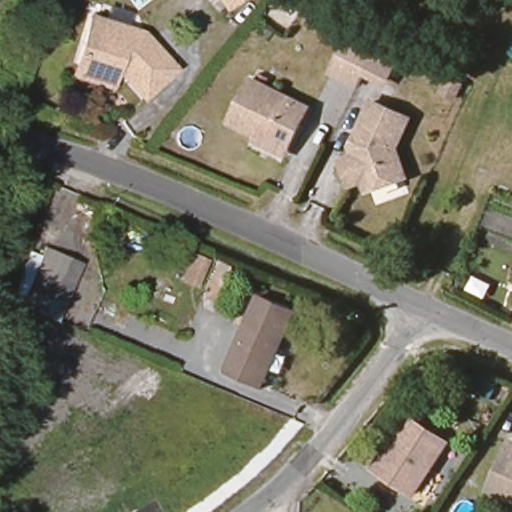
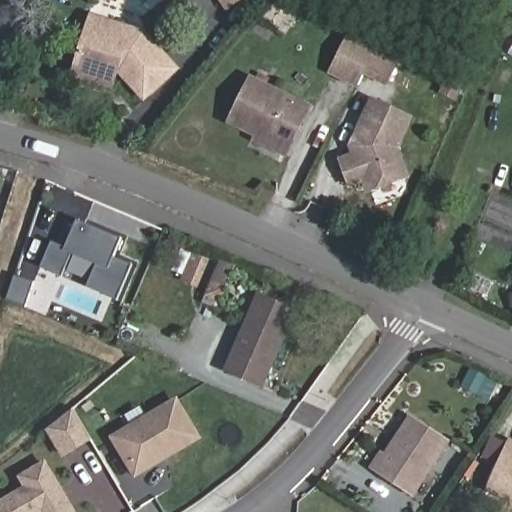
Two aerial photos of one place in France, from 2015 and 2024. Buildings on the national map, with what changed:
unchanged [(234,8),(228,0),(244,0),(234,8)]
unchanged [(76,76),(80,68),(96,22),(145,38),(179,71),(151,102),(120,73),(113,87),(76,76)]
unchanged [(342,39),(346,31),(369,43),(373,37),(374,38),(394,47),(379,79),(357,68),(348,86),(324,75),(342,39)]
unchanged [(255,143),(261,134),(235,121),(255,84),(310,113),(289,149),(285,155),(255,143)]
unchanged [(341,182),(336,169),(350,164),(375,115),(403,129),(389,159),(397,185),(360,197),(357,187),(344,192),(341,182)]
new [(40,268),(51,242),(65,247),(75,221),(121,239),(113,258),(131,266),(116,300),(85,287),(95,264),(72,255),(62,278),(40,268)]
demolished [(85,264),(63,321),(26,308),(48,247),(85,264)]
unchanged [(200,288),(184,283),(196,254),(213,261),(200,288)]
new [(13,278),(33,285),(24,310),(5,302),(13,278)]
unchanged [(295,311),(261,386),(226,370),(258,295),(295,311)]
new [(134,479),(109,438),(176,396),(202,439),(134,479)]
new [(62,458),(46,431),(73,408),(91,440),(62,458)]
unchanged [(372,469),(381,455),(384,457),(409,417),(446,440),(413,494),(372,469)]
unchanged [(494,487),(512,448),(512,496),(494,487)]
new [(17,478),(45,460),(76,512),(0,512),(0,501),(23,487),(17,478)]

